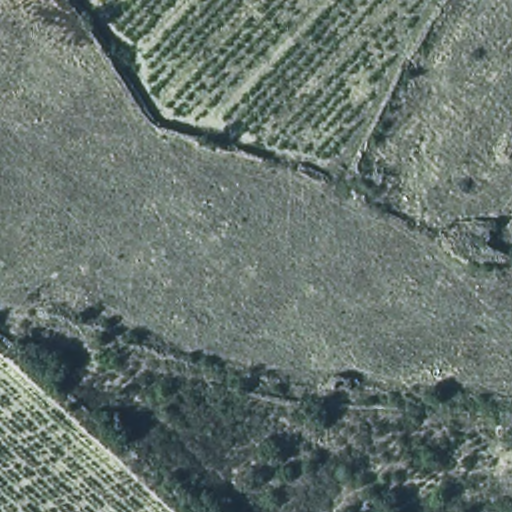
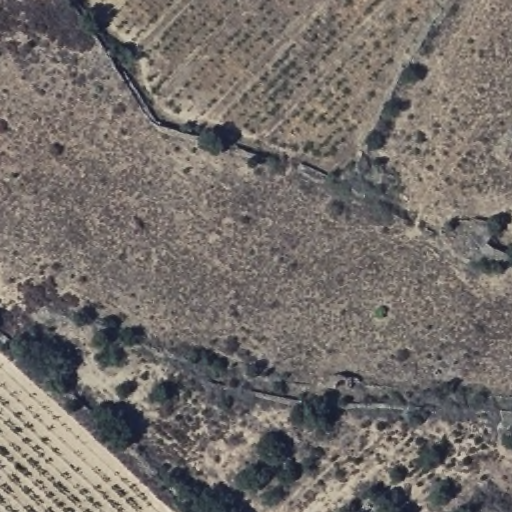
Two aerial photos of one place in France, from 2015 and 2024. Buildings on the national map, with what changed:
unchanged [(380,508),(375,512),(353,512),(352,511),(367,497),(380,508)]

